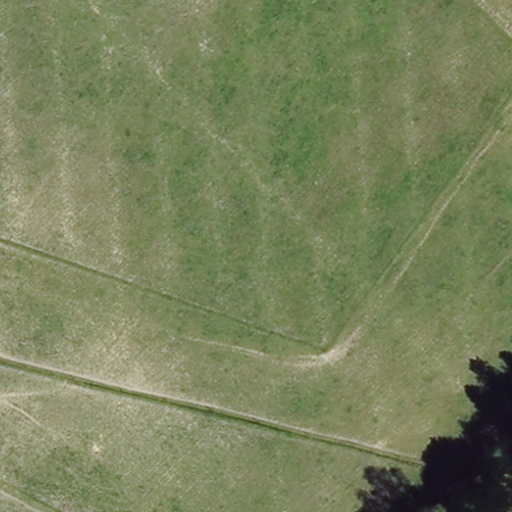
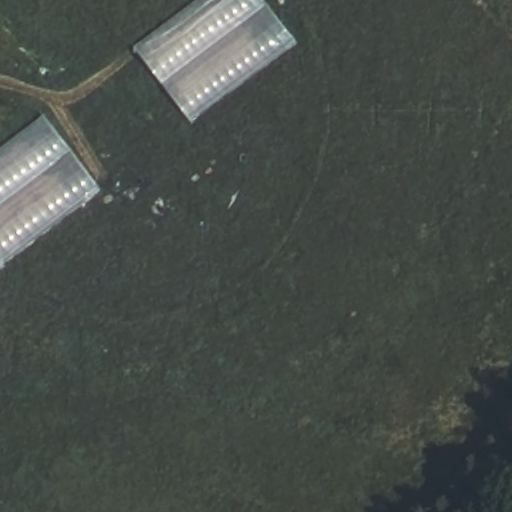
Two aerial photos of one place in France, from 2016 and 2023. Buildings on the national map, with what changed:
new [(191,124),(134,50),(198,0),(264,0),(297,42),(191,124)]
new [(0,265),(0,147),(45,114),(101,190),(0,265)]

